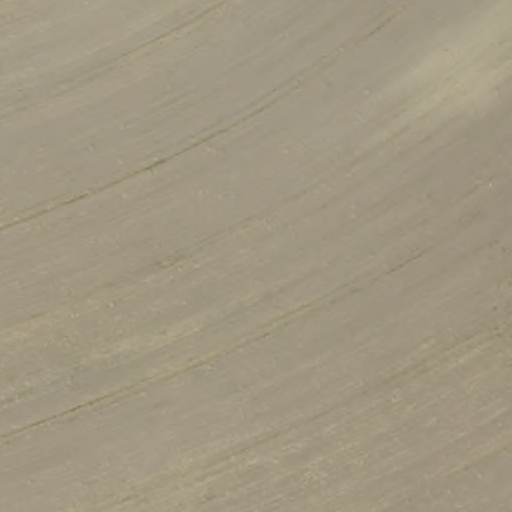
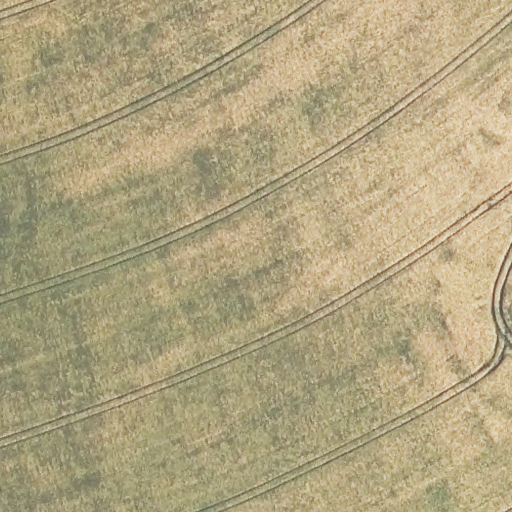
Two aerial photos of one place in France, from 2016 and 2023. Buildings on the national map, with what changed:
[]

